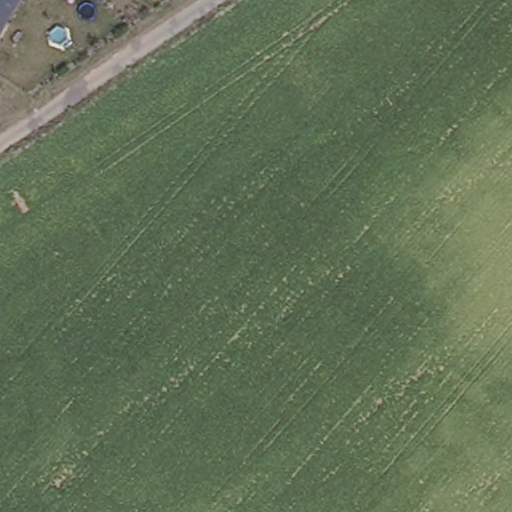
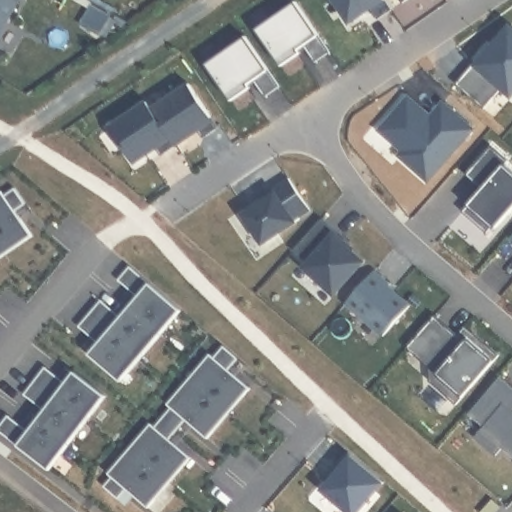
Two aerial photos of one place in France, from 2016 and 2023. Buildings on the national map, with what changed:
unchanged [(0,0),(19,0),(0,37),(0,0)]
new [(381,19),(373,8),(353,23),(336,0),(388,0),(394,9),(381,19)]
new [(404,0),(408,0),(405,2),(404,0)]
new [(455,88),(474,64),(478,69),(508,31),(512,35),(512,100),(511,101),(500,91),(483,112),(455,88)]
new [(148,101),(152,108),(189,84),(218,126),(204,136),(199,129),(161,155),(156,148),(134,161),(110,126),(148,101)]
new [(484,190),(468,175),(493,145),(509,160),(506,164),(512,170),(512,209),(488,235),(462,210),(484,190)]
new [(248,215),(269,200),(266,197),(292,179),(312,209),(298,219),(299,220),(265,243),(248,215)]
new [(17,207),(34,231),(0,255),(0,189),(4,187),(8,191),(16,184),(27,199),(17,207)]
new [(354,243),(351,247),(366,260),(337,293),(308,265),(310,263),(295,249),(324,217),(354,243)]
new [(182,310),(121,382),(90,354),(99,344),(79,325),(101,300),(122,318),(139,297),(119,280),(130,267),(182,310)]
new [(389,279),(387,282),(413,304),(386,334),(349,300),(378,269),(389,279)]
new [(468,340),(476,331),(503,354),(459,402),(433,379),(439,372),(409,346),(437,314),(468,340)]
new [(238,358),(229,369),(249,389),(207,438),(185,419),(169,439),(191,458),(148,508),(126,489),(118,499),(104,487),(112,477),(109,474),(151,424),(155,428),(170,408),(168,404),(210,354),(214,358),(224,346),(238,358)]
new [(0,427),(9,416),(29,431),(45,410),(25,394),(44,367),(65,383),(74,372),(106,395),(50,469),(0,431),(0,427)]
new [(512,384),(512,451),(504,444),(497,453),(477,435),(487,424),(470,409),(500,374),(512,384)]
new [(333,479),(329,476),(349,452),(384,481),(359,512),(352,512),(324,489),(333,479)]

